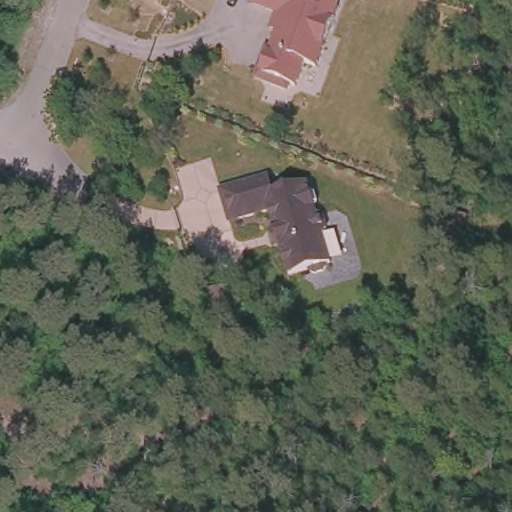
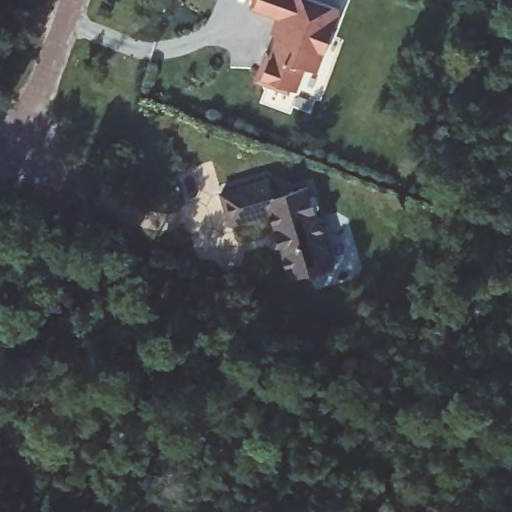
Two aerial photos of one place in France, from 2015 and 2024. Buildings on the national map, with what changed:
unchanged [(317,0),(341,9),(318,73),(306,68),(298,91),(292,89),(289,94),(254,81),(276,20),(253,10),(257,0),(317,0)]
unchanged [(264,242),(269,240),(264,221),(223,234),(213,203),(261,188),(264,201),(279,197),(280,202),(300,196),(309,226),(311,226),(316,228),(319,239),(316,244),(314,245),(323,274),(319,275),(319,276),(316,281),(308,283),(303,281),(303,280),(283,286),(274,254),(268,256),(264,242)]

